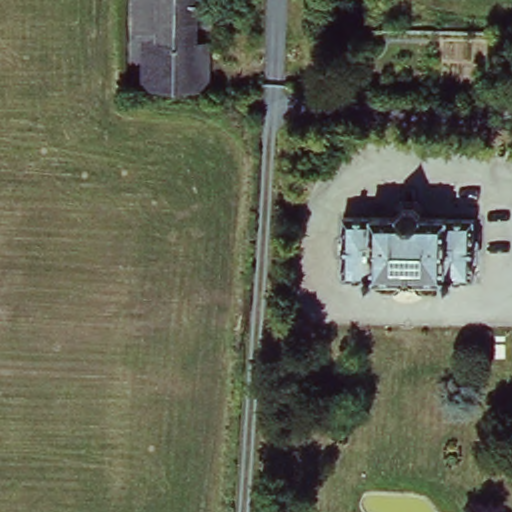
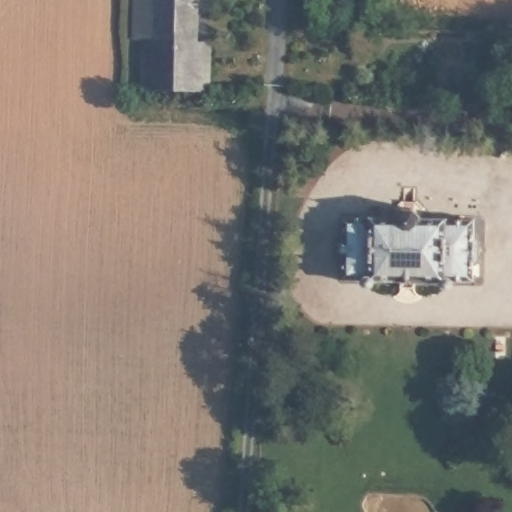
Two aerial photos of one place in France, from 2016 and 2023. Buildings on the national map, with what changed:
unchanged [(209,90),(193,89),(155,87),(139,86),(138,86),(139,54),(133,52),(137,0),(197,0),(194,52),(213,52),(209,90)]
unchanged [(335,282),(337,217),(470,219),(469,282),(335,282)]

